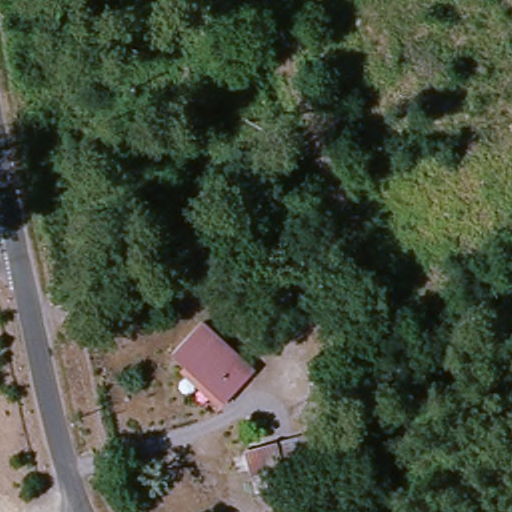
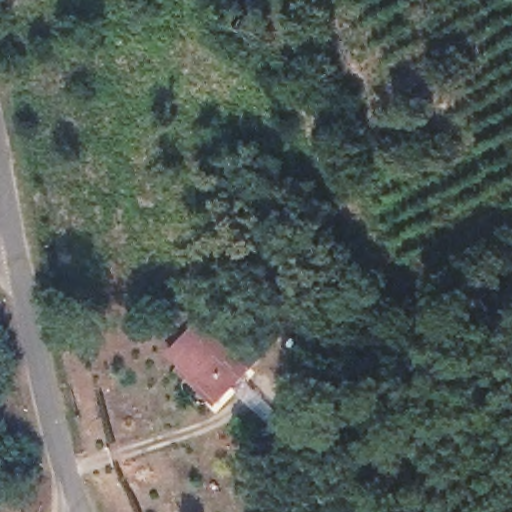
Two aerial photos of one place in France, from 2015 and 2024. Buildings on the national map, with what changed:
unchanged [(253,350),(243,360),(255,371),(230,399),(179,351),(216,313),(253,350)]
unchanged [(269,512),(305,496),(311,512),(269,512)]

